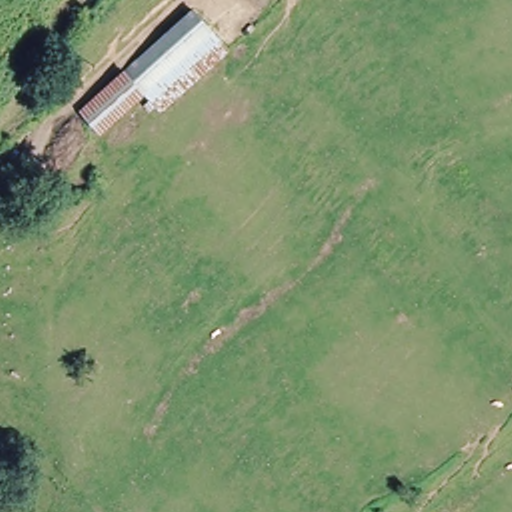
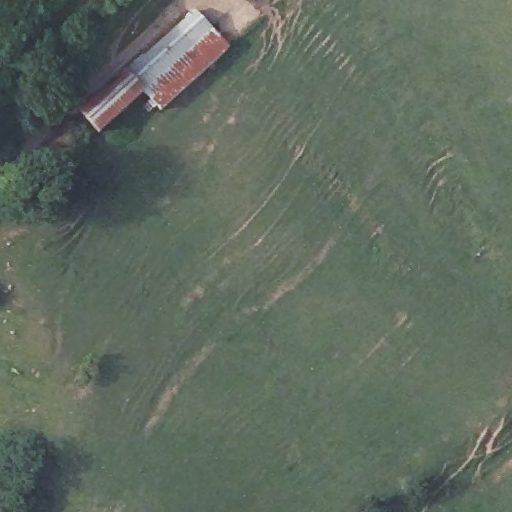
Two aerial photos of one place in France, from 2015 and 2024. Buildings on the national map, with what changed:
unchanged [(158,112),(138,87),(124,70),(195,11),(229,53),(158,112)]
unchanged [(138,87),(94,130),(79,107),(124,70),(138,87)]

